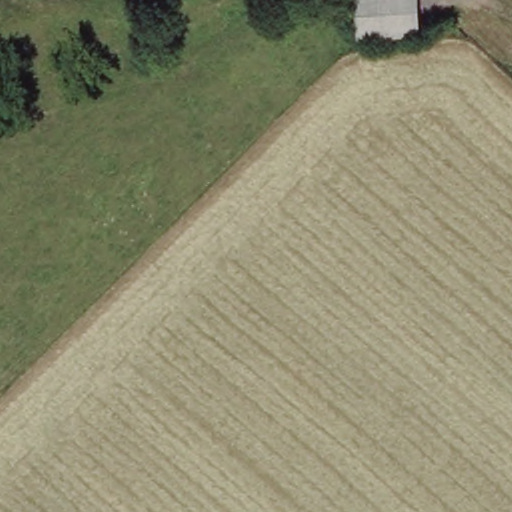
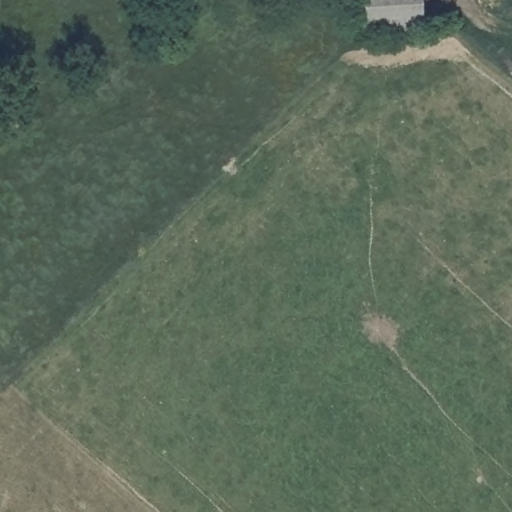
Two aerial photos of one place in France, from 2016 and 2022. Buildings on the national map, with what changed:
unchanged [(359,32),(356,0),(416,0),(419,26),(359,32)]

